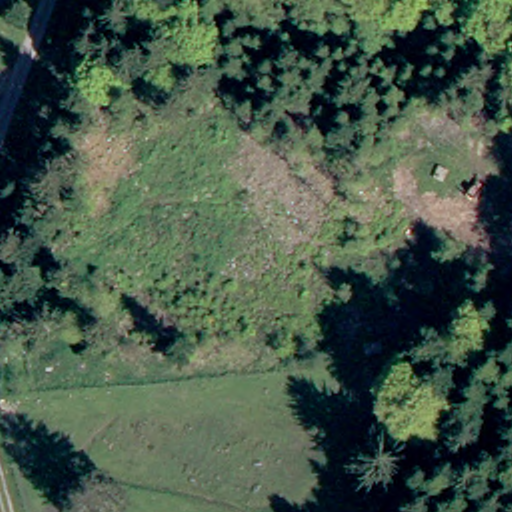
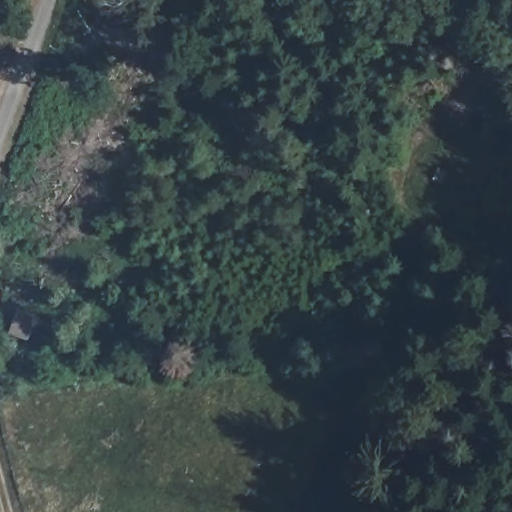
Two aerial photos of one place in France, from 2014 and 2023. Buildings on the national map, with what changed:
unchanged [(34,297),(26,322),(12,318),(20,293),(34,297)]

